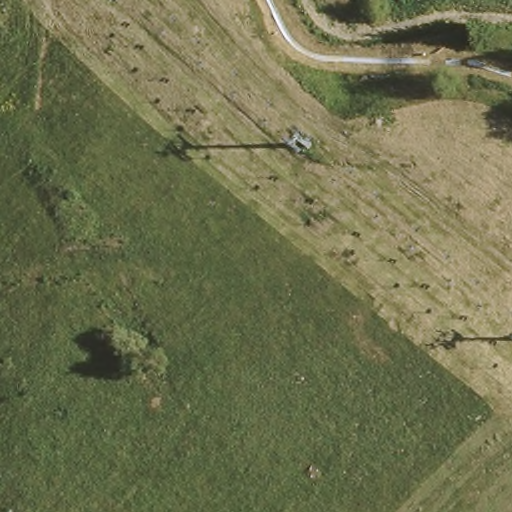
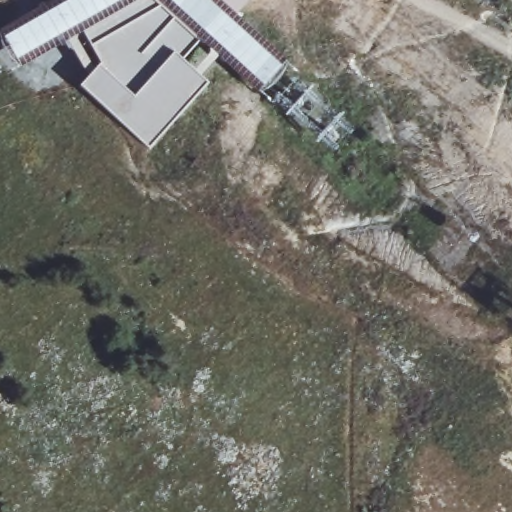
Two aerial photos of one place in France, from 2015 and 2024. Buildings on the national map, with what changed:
new [(100,65),(83,33),(141,0),(247,0),(249,2),(236,15),(288,62),(275,79),(259,94),(200,41),(182,61),(208,85),(149,147),(80,87),(100,65)]

